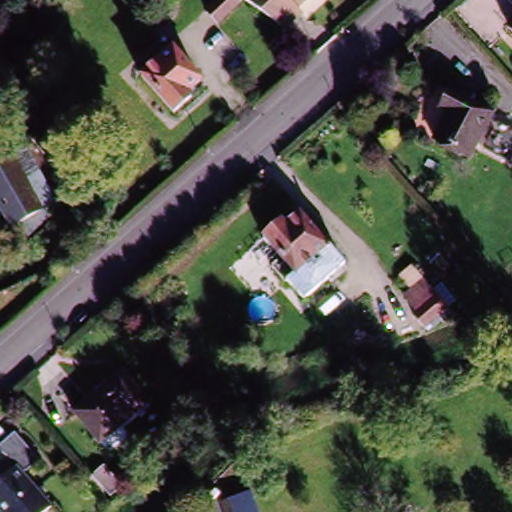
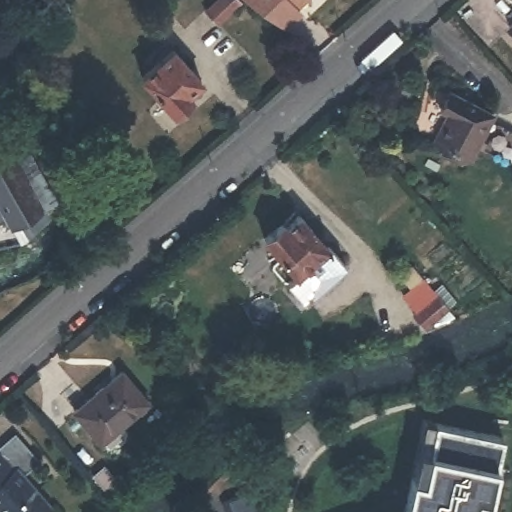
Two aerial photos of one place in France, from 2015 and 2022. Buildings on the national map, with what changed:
unchanged [(209,24),(198,12),(210,0),(228,0),(231,3),(209,24)]
unchanged [(298,7),(274,27),(257,14),(237,0),(296,0),(294,2),(298,7)]
unchanged [(509,32),(512,29),(512,34),(509,32)]
unchanged [(203,81),(189,93),(194,97),(176,114),(143,78),(173,50),(203,81)]
unchanged [(492,111),(469,158),(434,141),(448,113),(439,109),(448,90),(492,111)]
unchanged [(44,207),(13,228),(4,214),(0,217),(0,154),(9,148),(44,207)]
unchanged [(328,247),(329,245),(347,265),(309,300),(290,280),(296,274),(266,240),(284,224),(289,228),(301,217),(328,247)]
unchanged [(427,333),(415,320),(428,309),(424,304),(421,306),(402,284),(413,274),(433,297),(449,316),(427,333)]
unchanged [(151,406),(120,432),(115,426),(98,441),(76,416),(123,375),(151,406)]
new [(391,510),(402,506),(412,464),(424,408),(435,410),(503,426),(488,488),(477,486),(471,510),(478,512),(385,512),(391,510)]
unchanged [(24,476),(53,509),(50,512),(0,512),(0,448),(15,435),(39,463),(24,476)]
unchanged [(259,512),(234,512),(230,500),(251,492),(259,512)]

